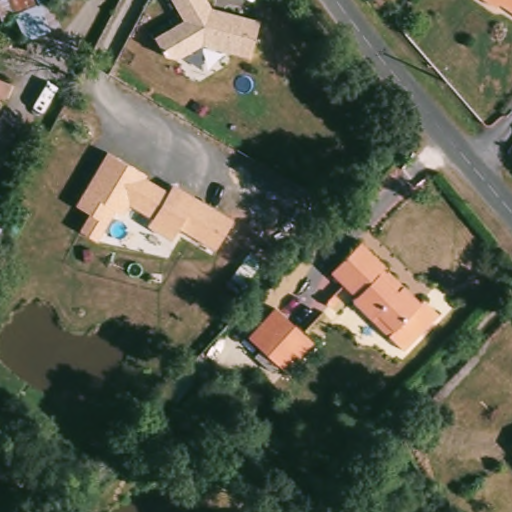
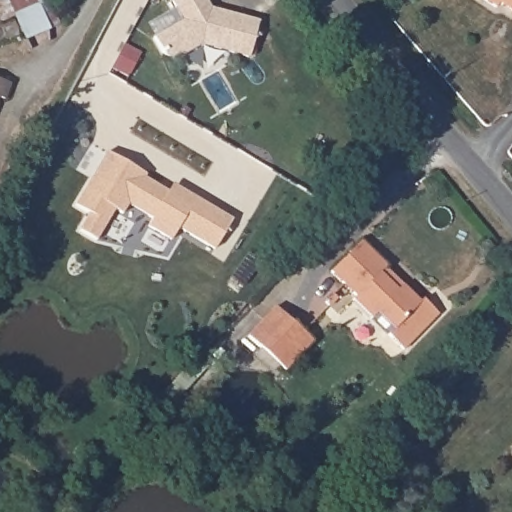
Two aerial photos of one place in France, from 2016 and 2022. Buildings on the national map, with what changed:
unchanged [(175,61),(163,57),(152,36),(182,20),(171,0),(206,0),(210,8),(259,21),(249,58),(202,46),(175,61)]
unchanged [(501,4),(498,9),(486,0),(512,0),(512,11),(501,4)]
unchanged [(47,3),(57,25),(21,40),(12,18),(47,3)]
unchanged [(4,101),(0,99),(0,81),(10,85),(4,101)]
unchanged [(145,174),(144,178),(167,191),(170,184),(231,218),(215,249),(177,230),(171,242),(145,228),(151,218),(127,206),(124,216),(115,211),(96,241),(78,232),(88,214),(74,206),(106,152),(145,174)]
unchanged [(0,224),(0,220),(2,221),(0,224)]
unchanged [(352,302),(356,298),(332,275),(361,243),(387,269),(405,286),(422,302),(424,299),(442,316),(405,353),(388,336),(372,321),(352,302)]
unchanged [(272,310),(308,344),(280,373),(244,339),(272,310)]

